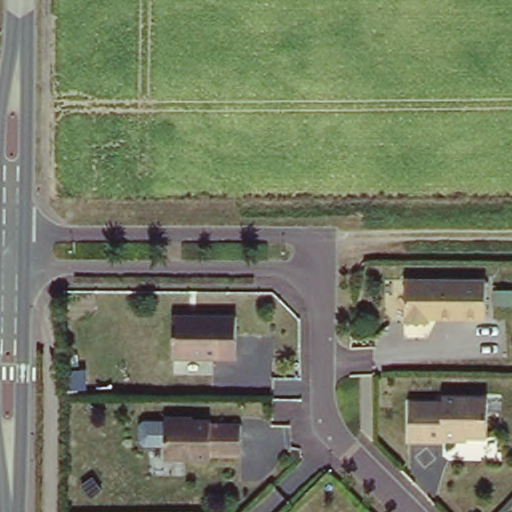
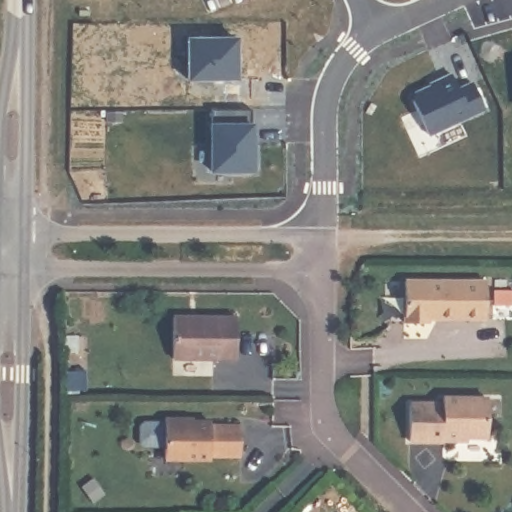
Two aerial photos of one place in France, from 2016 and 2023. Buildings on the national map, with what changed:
new [(232,36),(232,76),(184,77),(184,36),(232,36)]
new [(415,94),(435,85),(434,83),(452,75),(459,91),(473,84),(484,109),(428,135),(413,101),(415,94)]
new [(247,106),(247,141),(250,141),(250,167),(207,168),(207,106),(247,106)]
unchanged [(488,277),(487,314),(429,314),(429,319),(406,319),(406,276),(488,277)]
unchanged [(172,308),(235,308),(235,350),(171,350),(172,308)]
unchanged [(439,396),(439,390),(484,390),(484,429),(458,429),(458,432),(440,432),(440,434),(406,434),(407,396),(439,396)]
unchanged [(182,409),(182,412),(209,412),(209,415),(239,415),(239,446),(209,446),(209,449),(163,450),(164,410),(182,409)]

